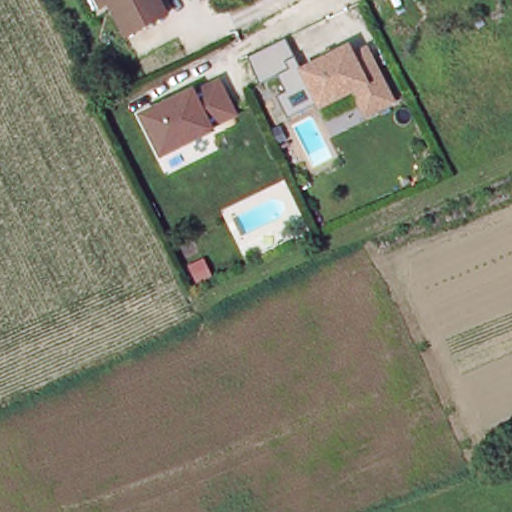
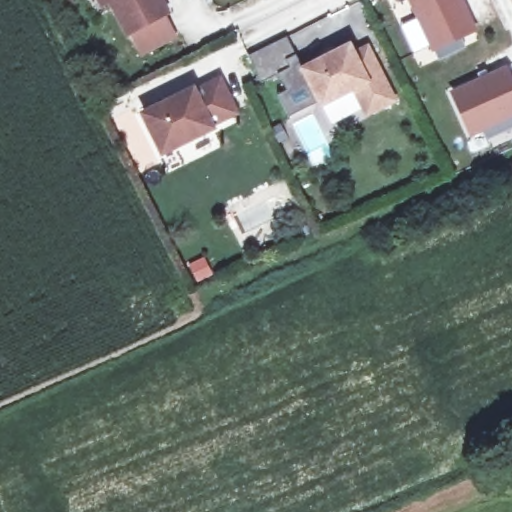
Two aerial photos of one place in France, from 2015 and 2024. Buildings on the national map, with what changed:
unchanged [(105,1),(104,0),(107,0),(105,1)]
unchanged [(171,7),(131,28),(116,0),(167,0),(171,7)]
new [(399,1),(398,0),(403,0),(399,1)]
new [(431,53),(406,0),(462,0),(476,32),(460,40),(464,48),(435,60),(431,53)]
unchanged [(512,3),(511,0),(512,0),(512,3)]
unchanged [(338,49),(343,58),(356,51),(382,104),(356,117),(343,92),(310,108),(292,72),(338,49)]
new [(485,70),(486,73),(505,65),(512,79),(512,128),(484,140),(480,133),(470,137),(449,90),(476,77),(475,74),(485,70)]
unchanged [(192,98),(193,101),(218,89),(234,120),(210,133),(211,136),(162,161),(143,123),(192,98)]

